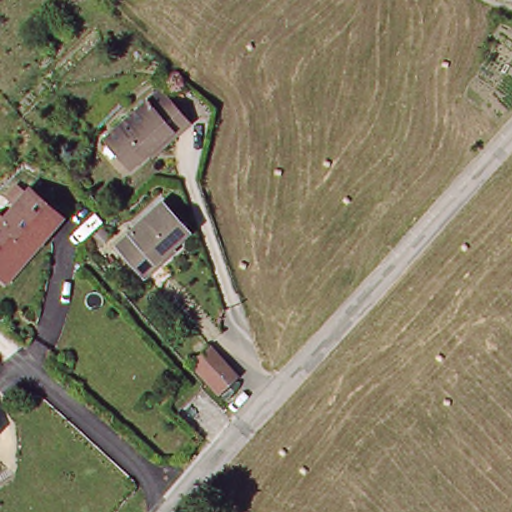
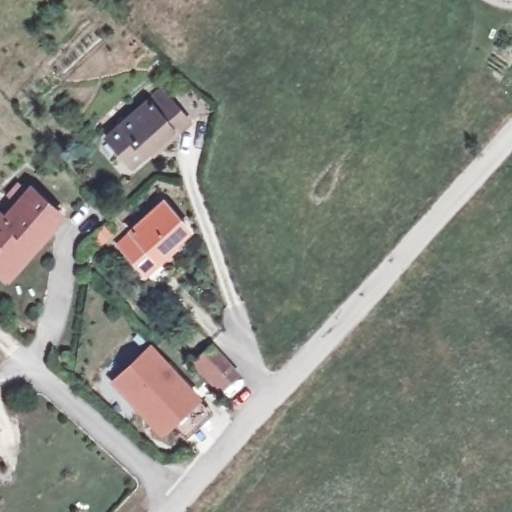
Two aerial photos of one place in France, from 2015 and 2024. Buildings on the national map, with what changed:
unchanged [(152,150),(147,146),(128,162),(103,133),(157,85),(178,109),(187,119),(152,150)]
unchanged [(4,273),(0,270),(0,217),(2,214),(7,219),(35,189),(35,188),(65,216),(62,220),(37,248),(10,279),(4,273)]
unchanged [(148,277),(140,268),(119,245),(165,203),(191,231),(159,260),(162,264),(148,277)]
new [(111,382),(152,345),(202,399),(162,436),(111,382)]
unchanged [(240,375),(222,392),(195,363),(214,346),(240,375)]

